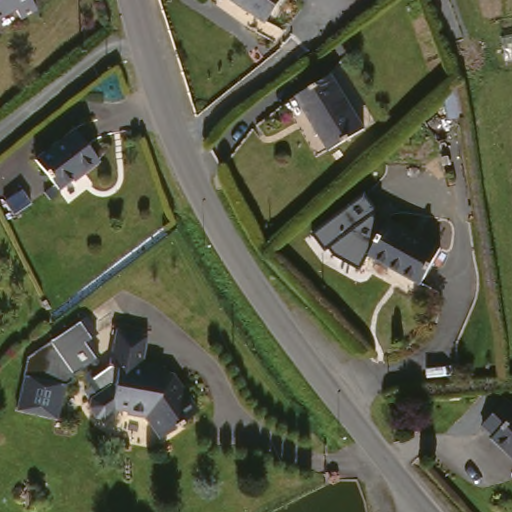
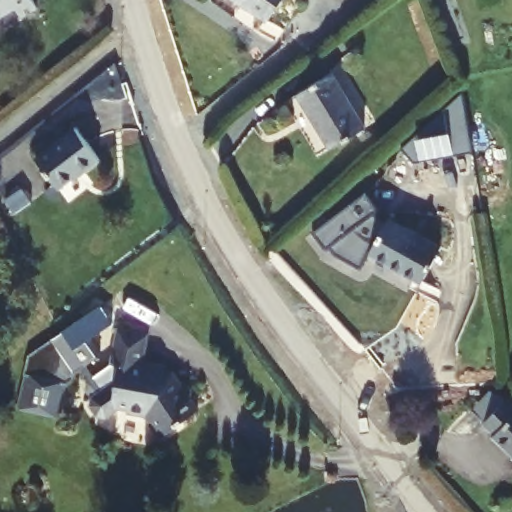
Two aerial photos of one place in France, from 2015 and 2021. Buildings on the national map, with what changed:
unchanged [(38,7),(21,16),(16,5),(0,13),(0,0),(34,0),(38,7)]
unchanged [(256,19),(234,0),(273,0),(256,19)]
unchanged [(362,127),(328,147),(294,95),(329,75),(362,127)]
new [(473,152),(414,163),(403,149),(462,94),(473,152)]
unchanged [(96,160),(75,177),(72,173),(53,189),(29,159),(69,126),(96,160)]
unchanged [(381,234),(367,256),(359,265),(328,247),(312,233),(364,194),(381,207),(369,219),(386,226),(381,234)]
unchanged [(416,286),(367,256),(386,226),(389,220),(438,250),(416,286)]
unchanged [(93,361),(59,382),(53,415),(11,409),(23,359),(78,324),(93,361)]
unchanged [(152,370),(158,376),(164,373),(172,375),(196,414),(155,439),(141,416),(123,413),(124,410),(116,409),(101,417),(86,407),(87,398),(107,387),(112,388),(116,369),(107,367),(114,330),(146,337),(139,368),(152,370)]
unchanged [(489,437),(478,428),(502,404),(512,414),(512,468),(484,441),(489,437)]

